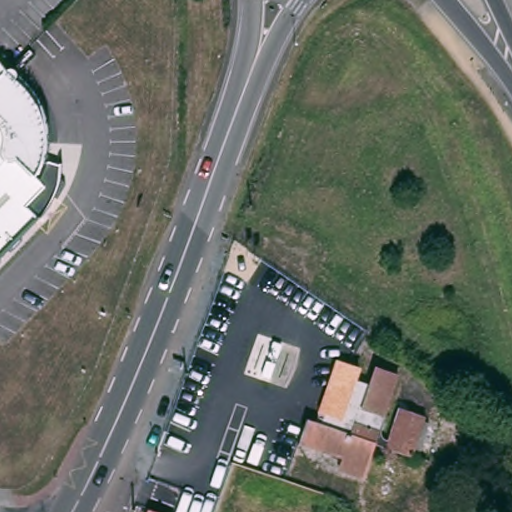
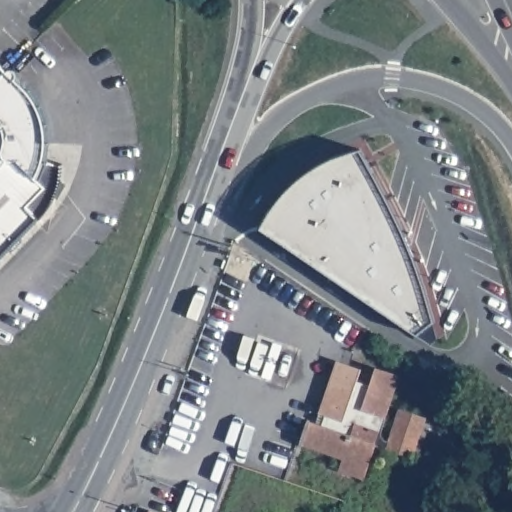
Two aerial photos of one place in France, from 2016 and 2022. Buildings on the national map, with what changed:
unchanged [(0,80),(0,55),(11,69),(0,80)]
unchanged [(20,72),(19,80),(28,90),(35,103),(39,112),(42,122),(44,131),(45,142),(45,153),(42,163),(39,171),(36,178),(47,189),(29,208),(39,218),(0,255),(0,80),(11,69),(20,72)]
new [(277,213),(287,199),(293,191),(307,177),(355,151),(366,147),(447,315),(431,329),(269,229),(277,213)]
unchanged [(344,476),(349,461),(304,447),(311,428),(325,432),(329,421),(322,418),(340,361),(365,372),(362,381),(375,386),(381,369),(402,377),(368,483),(344,476)]
unchanged [(424,461),(396,454),(410,408),(432,416),(431,420),(437,422),(424,461)]
unchanged [(184,512),(148,512),(150,509),(140,505),(155,465),(196,480),(184,512)]

